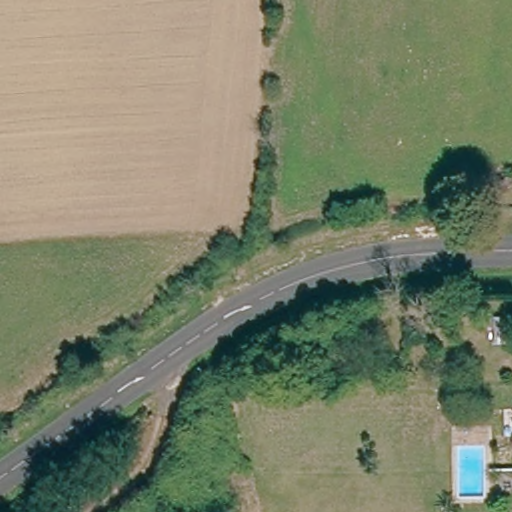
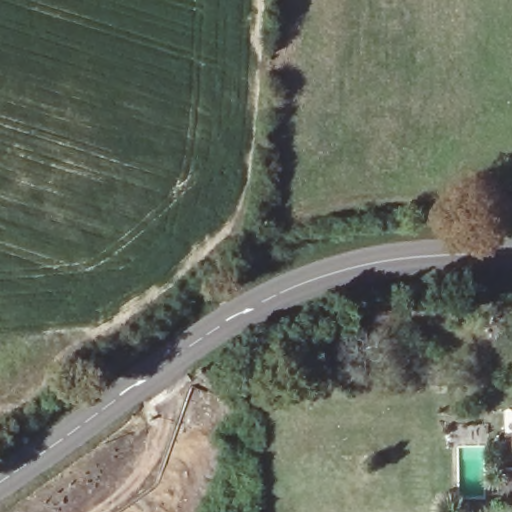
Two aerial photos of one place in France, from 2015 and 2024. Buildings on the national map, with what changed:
[]

